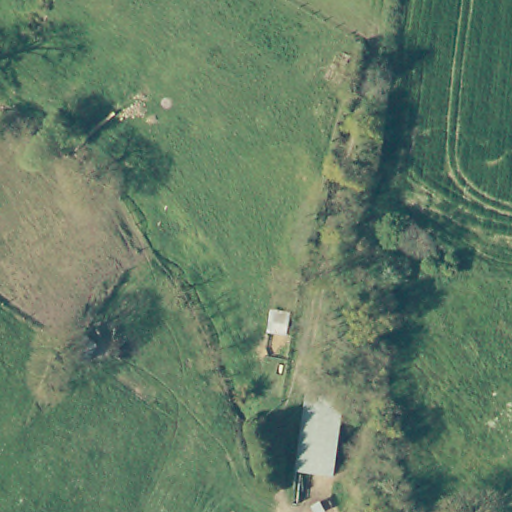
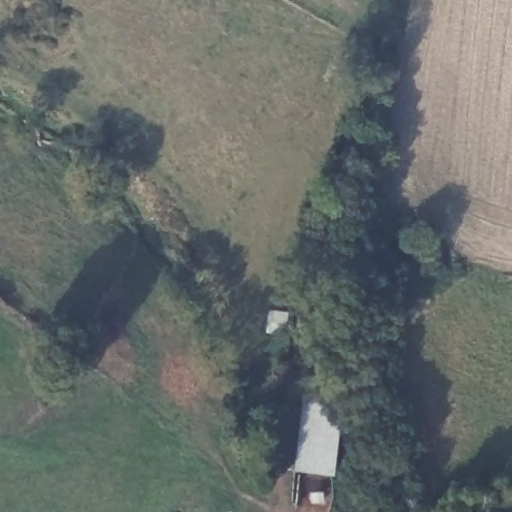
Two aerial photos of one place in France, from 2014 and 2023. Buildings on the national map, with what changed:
unchanged [(296,471),(306,393),(320,395),(347,398),(337,476),(311,472),(296,471)]

